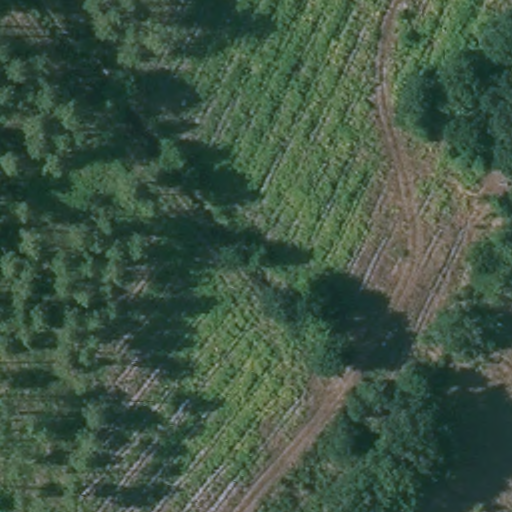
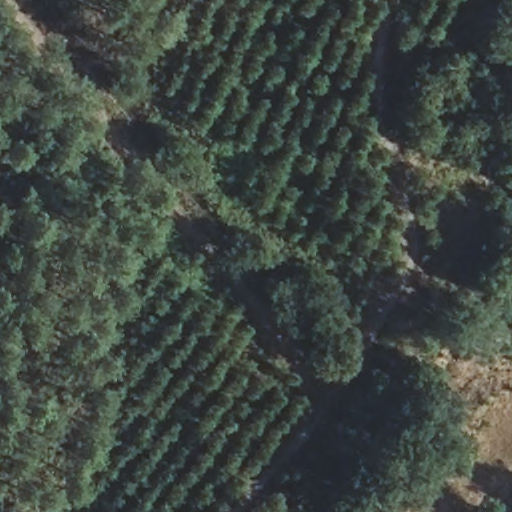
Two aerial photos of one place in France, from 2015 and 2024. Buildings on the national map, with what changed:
[]

